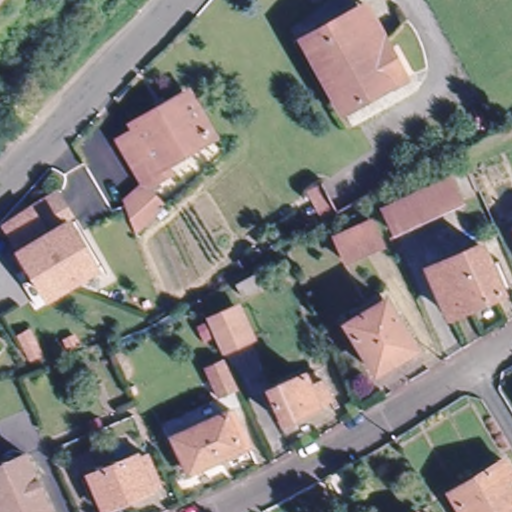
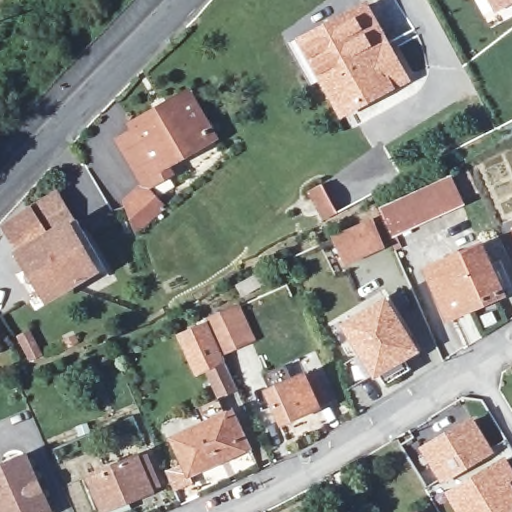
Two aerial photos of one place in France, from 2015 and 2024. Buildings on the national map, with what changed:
new [(494,13),(488,0),(512,0),(512,3),(494,13)]
unchanged [(362,3),(393,55),(377,65),(347,12),(362,3)]
unchanged [(347,12),(377,65),(393,55),(405,75),(343,110),(321,73),(301,39),(347,12)]
unchanged [(124,204),(148,186),(124,142),(140,132),(136,126),(187,97),(211,139),(166,165),(171,174),(149,187),(164,206),(135,231),(126,209),(124,204)]
unchanged [(389,232),(375,201),(448,166),(460,205),(389,232)]
unchanged [(42,303),(13,255),(16,245),(5,225),(29,206),(43,230),(68,215),(96,267),(42,303)]
unchanged [(364,210),(377,240),(342,256),(329,225),(364,210)]
unchanged [(478,245),(499,290),(451,315),(429,267),(478,245)]
unchanged [(257,261),(262,272),(240,284),(235,273),(257,261)]
unchanged [(205,308),(233,295),(248,328),(220,341),(205,308)]
unchanged [(380,299),(412,347),(372,375),(340,325),(380,299)]
unchanged [(17,362),(0,366),(0,335),(35,327),(40,346),(42,356),(17,362)]
unchanged [(233,369),(237,377),(218,386),(204,356),(223,347),(233,369)]
unchanged [(306,376),(311,386),(323,381),(332,402),(283,423),(269,392),(306,376)]
unchanged [(223,410),(227,408),(244,446),(185,473),(167,435),(223,410)]
new [(490,447),(470,471),(443,486),(420,447),(473,416),(490,447)]
unchanged [(155,486),(147,490),(149,495),(111,512),(101,512),(87,480),(142,457),(155,486)]
unchanged [(42,512),(0,512),(0,468),(18,459),(42,512)]
unchanged [(512,472),(512,478),(505,482),(512,494),(512,512),(462,512),(453,496),(506,462),(512,472)]
unchanged [(358,498),(344,506),(332,485),(346,476),(358,498)]

